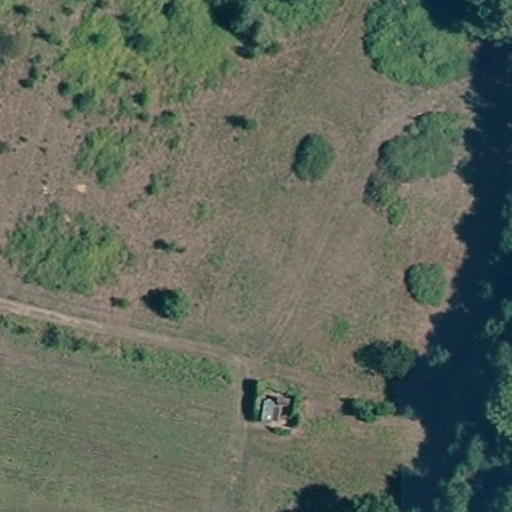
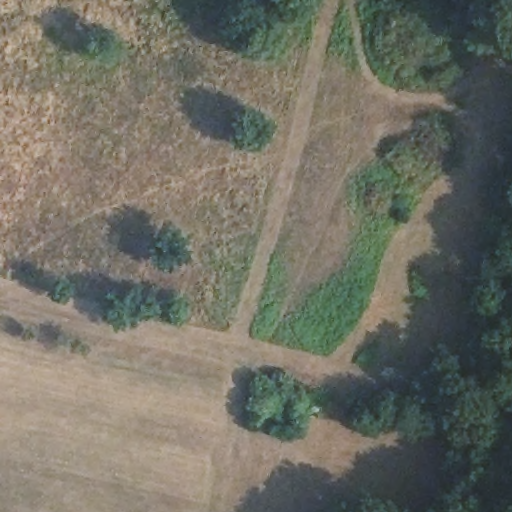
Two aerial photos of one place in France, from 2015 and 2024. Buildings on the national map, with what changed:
unchanged [(263,402),(281,405),(276,433),(257,428),(263,402)]

